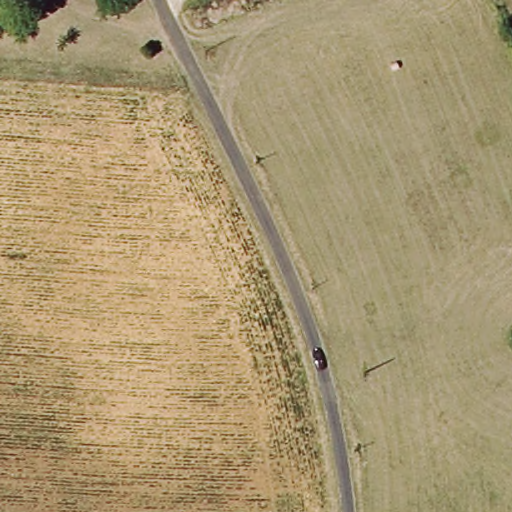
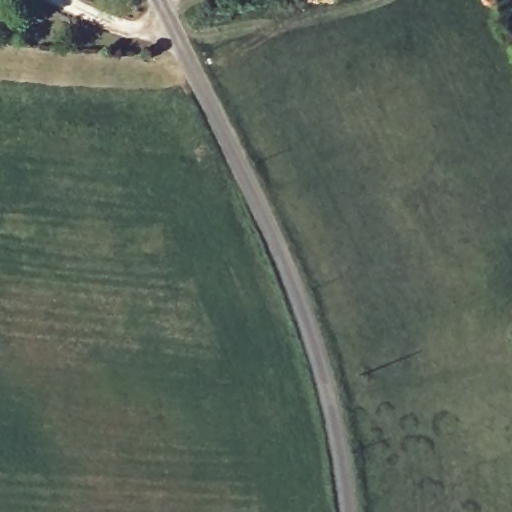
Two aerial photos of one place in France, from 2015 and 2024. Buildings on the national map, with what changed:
[]

